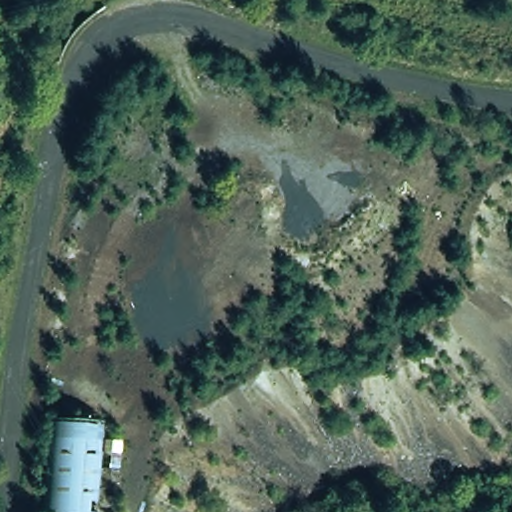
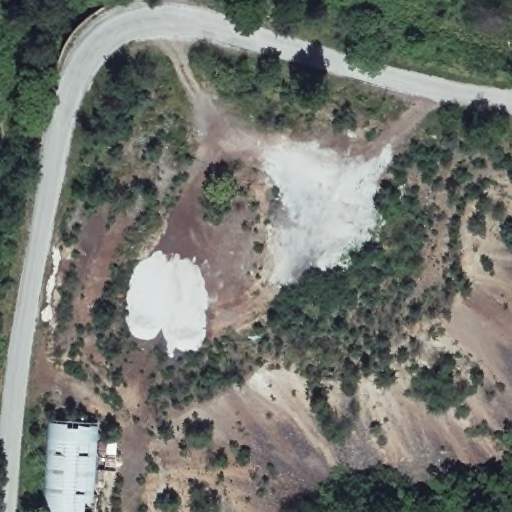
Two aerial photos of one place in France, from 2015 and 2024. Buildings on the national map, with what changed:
unchanged [(110,422),(110,444),(129,446),(123,512),(47,512),(55,421),(110,422)]

